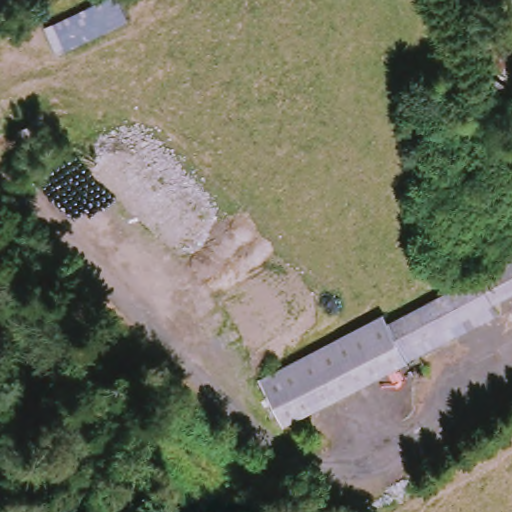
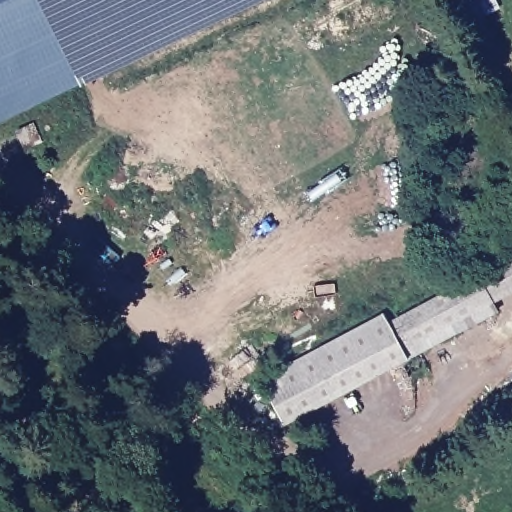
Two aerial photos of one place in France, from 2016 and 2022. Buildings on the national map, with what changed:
new [(0,126),(0,0),(265,0),(0,126)]
demolished [(55,24),(110,0),(128,0),(135,15),(65,45),(55,24)]
unchanged [(389,311),(395,321),(512,260),(512,293),(498,300),(502,308),(289,423),(262,379),(389,311)]

